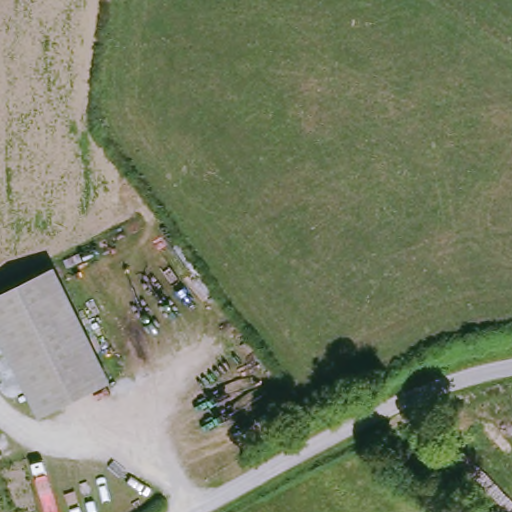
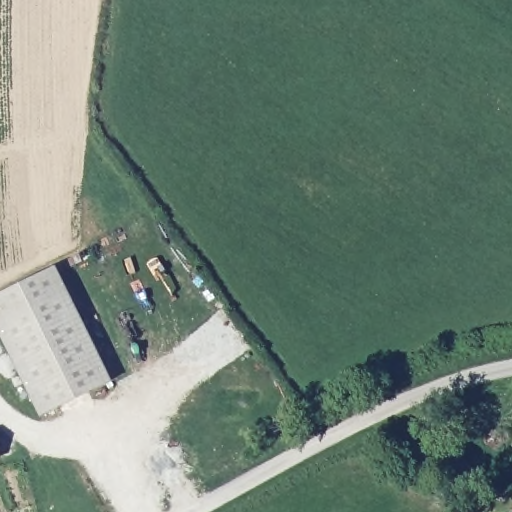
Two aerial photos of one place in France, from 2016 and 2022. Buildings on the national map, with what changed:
unchanged [(85,393),(43,415),(0,327),(0,294),(58,265),(85,322),(113,380),(85,393)]

